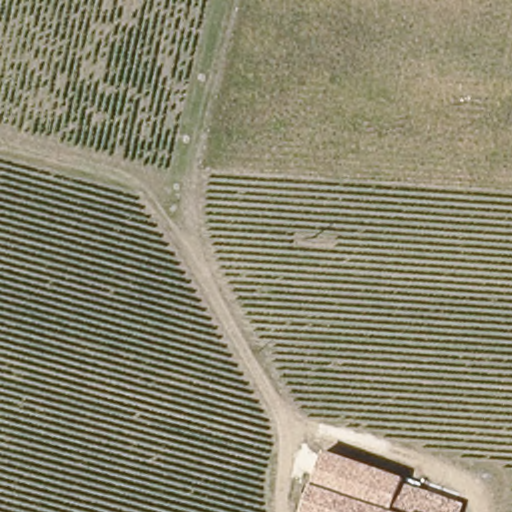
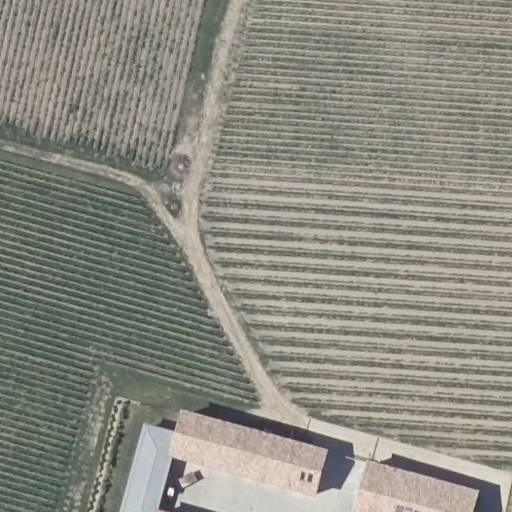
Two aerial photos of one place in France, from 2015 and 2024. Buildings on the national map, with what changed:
new [(143,424),(175,430),(182,409),(324,450),(314,496),(171,457),(157,508),(170,512),(121,512),(143,424)]
demolished [(324,457),(466,507),(464,512),(304,512),(324,457)]
new [(479,493),(474,512),(351,512),(365,459),(479,493)]

